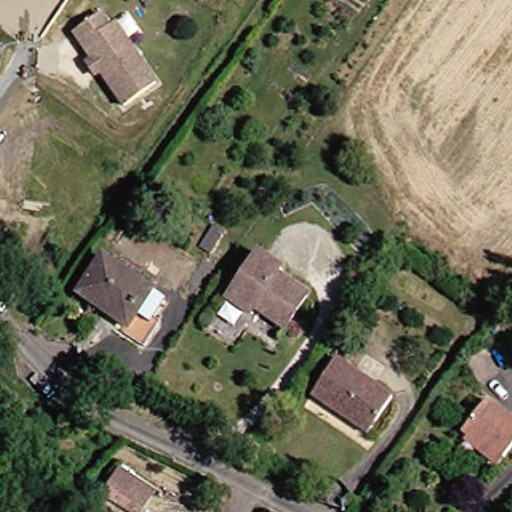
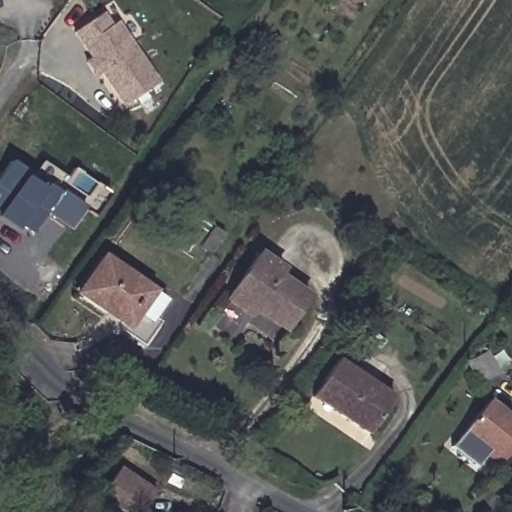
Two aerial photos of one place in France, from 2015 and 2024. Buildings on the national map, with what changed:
unchanged [(95,63),(100,59),(81,32),(107,14),(116,26),(122,22),(165,80),(134,104),(109,70),(103,75),(95,63)]
new [(3,213),(0,211),(0,181),(14,159),(61,191),(36,229),(24,221),(21,226),(3,213)]
unchanged [(223,234),(212,249),(204,244),(214,228),(223,234)]
unchanged [(308,296),(285,330),(255,308),(250,316),(226,299),(259,253),(282,269),(279,275),(308,296)]
unchanged [(155,323),(142,314),(133,327),(83,292),(108,257),(158,292),(171,300),(155,323)]
unchanged [(396,397),(373,433),(318,397),(342,361),(396,397)]
unchanged [(470,437),(463,432),(488,400),(512,419),(512,447),(504,457),(498,466),(467,442),(470,437)]
unchanged [(141,512),(132,512),(103,493),(120,468),(155,492),(141,512)]

